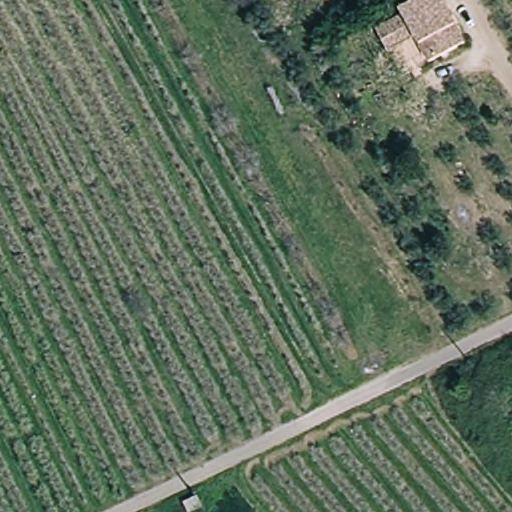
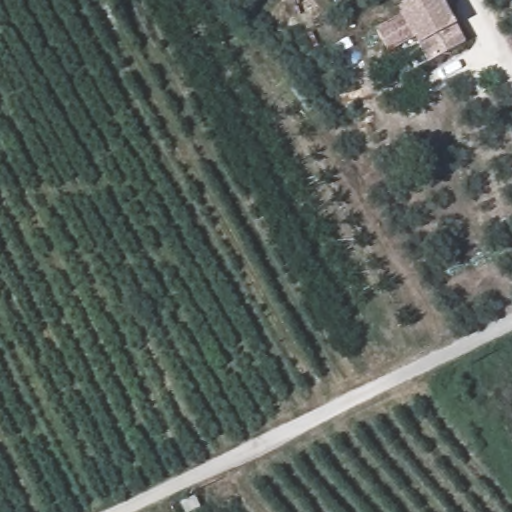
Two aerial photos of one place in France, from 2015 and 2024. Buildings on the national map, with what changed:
unchanged [(394,26),(409,18),(405,11),(425,0),(444,0),(467,45),(433,63),(419,37),(403,45),(391,51),(381,33),(394,26)]
unchanged [(188,511),(182,500),(197,494),(202,505),(188,511)]

